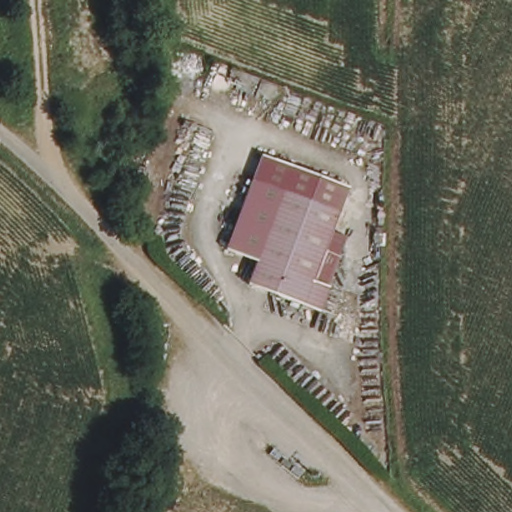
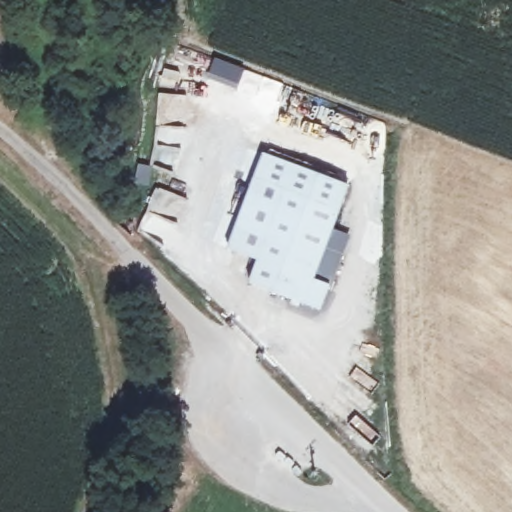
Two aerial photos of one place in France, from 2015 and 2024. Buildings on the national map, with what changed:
unchanged [(334,250),(311,306),(242,278),(252,256),(221,243),(258,149),(341,182),(323,227),(340,234),(334,250)]

